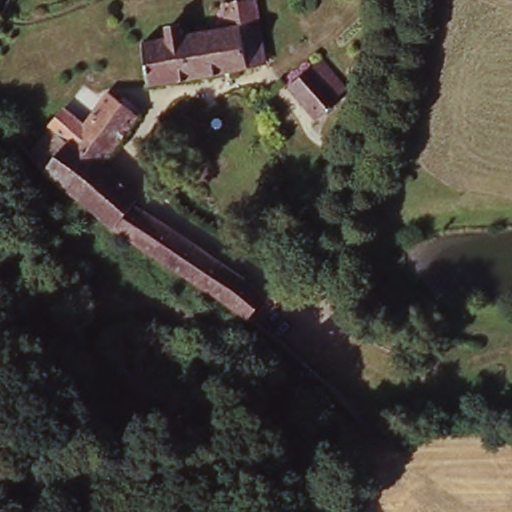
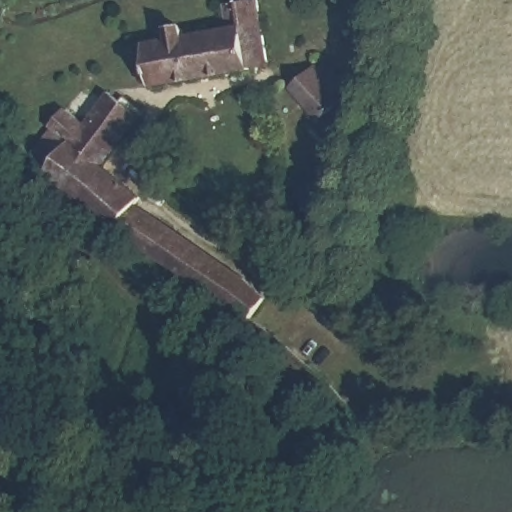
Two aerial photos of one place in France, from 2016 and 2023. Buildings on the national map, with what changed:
unchanged [(268,66),(248,71),(240,26),(234,6),(256,2),(266,60),(268,66)]
unchanged [(248,71),(150,87),(141,42),(240,26),(248,71)]
unchanged [(286,90),(321,64),(327,70),(351,101),(314,127),(286,90)]
unchanged [(278,343),(247,320),(193,285),(118,232),(45,173),(68,144),(51,130),(63,112),(81,125),(106,94),(138,119),(101,169),(140,199),(136,207),(265,297),(259,305),(289,326),(278,343)]

